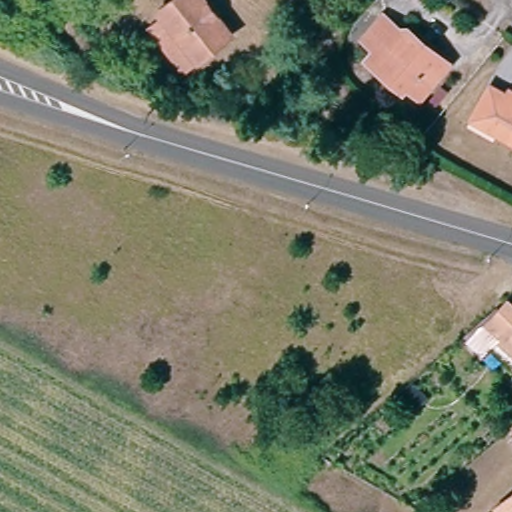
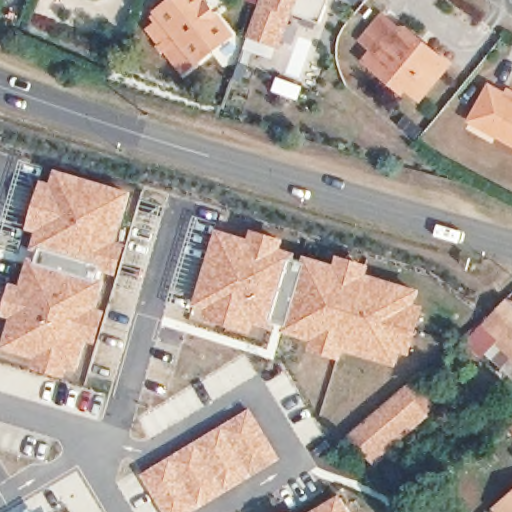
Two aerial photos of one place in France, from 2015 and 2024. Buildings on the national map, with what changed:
unchanged [(185,70),(158,36),(170,25),(159,11),(173,0),(205,0),(232,33),(185,70)]
new [(248,36),(260,4),(250,0),(328,0),(320,21),(295,12),(281,49),(248,36)]
unchanged [(377,56),(366,47),(384,24),(401,36),(414,35),(452,65),(424,100),(411,90),(407,96),(375,71),(369,66),(377,56)]
unchanged [(512,100),(512,144),(469,119),(489,86),(512,100)]
new [(132,191),(119,241),(128,244),(119,275),(105,271),(103,280),(106,280),(98,307),(108,310),(98,344),(88,341),(79,371),(69,368),(66,377),(33,368),(35,357),(3,348),(11,317),(1,315),(11,281),(21,283),(29,256),(36,257),(38,251),(31,250),(37,231),(28,229),(43,179),(51,182),(56,169),(132,191)]
new [(218,229),(250,237),(253,228),(285,238),(283,247),(298,252),(295,259),(303,261),(304,254),(335,263),(338,255),(371,265),(369,273),(420,289),(417,303),(426,305),(412,355),(402,352),(399,366),(346,351),(343,360),(309,350),(312,340),(283,331),(284,325),(274,322),(273,329),(255,323),(253,333),(204,318),(206,310),(195,305),(218,229)]
unchanged [(512,307),(512,358),(496,343),(483,357),(469,345),(507,302),(512,307)]
new [(438,410),(374,465),(349,436),(414,379),(438,410)]
new [(251,408),(282,460),(193,512),(164,512),(141,475),(251,408)]
unchanged [(511,428),(512,427),(512,430),(511,428)]
new [(340,494),(352,512),(310,512),(340,494)]
unchanged [(493,511),(499,506),(512,494),(512,512),(493,512),(493,511)]

